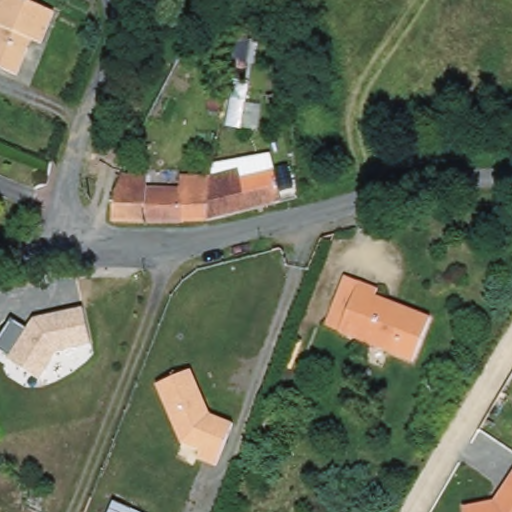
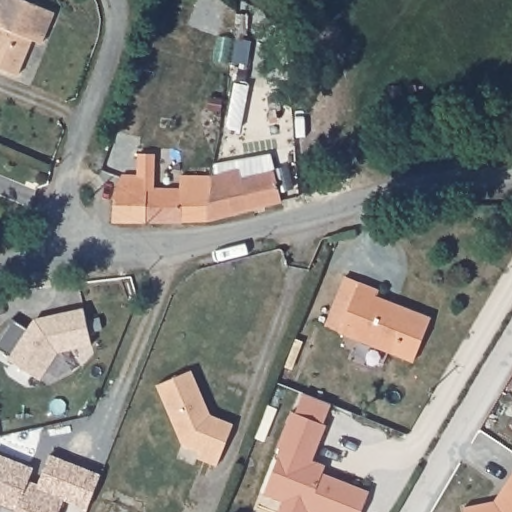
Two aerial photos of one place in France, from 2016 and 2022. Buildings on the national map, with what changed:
unchanged [(51,14),(38,45),(25,40),(21,50),(25,51),(14,77),(0,71),(0,0),(18,0),(51,14)]
unchanged [(273,173),(280,202),(207,222),(213,186),(273,173)]
unchanged [(123,178),(147,178),(147,190),(180,190),(181,177),(214,177),(213,186),(207,222),(113,224),(114,199),(123,178)]
unchanged [(372,300),(389,307),(391,303),(428,318),(411,362),(337,332),(323,327),(343,276),(357,282),(376,290),(372,300)]
unchanged [(11,356),(0,350),(0,338),(11,320),(26,329),(33,319),(85,307),(91,345),(56,354),(41,379),(8,361),(11,356)]
unchanged [(190,370),(210,417),(231,424),(218,470),(195,463),(198,452),(181,444),(155,388),(190,370)]
new [(359,512),(309,512),(305,510),(305,512),(276,512),(281,500),(262,493),(279,448),(276,446),(290,410),(322,422),(325,424),(310,459),(324,465),(320,472),(333,477),(368,491),(359,512)]
new [(28,479),(38,483),(50,454),(83,466),(69,501),(63,498),(58,512),(0,512),(0,454),(33,465),(28,479)]
unchanged [(463,512),(462,507),(496,499),(511,471),(512,472),(512,512),(463,512)]
demolished [(11,512),(0,512),(0,484),(19,493),(11,512)]

